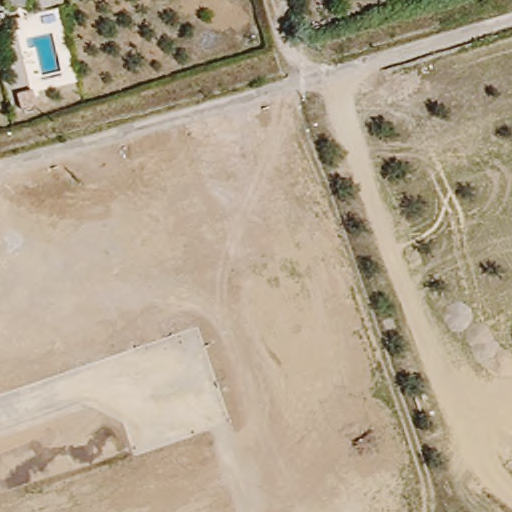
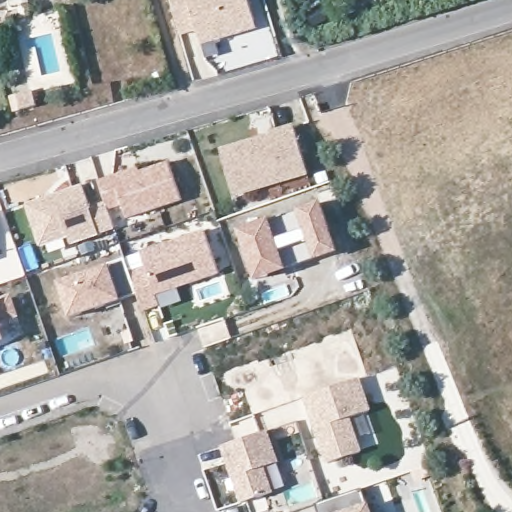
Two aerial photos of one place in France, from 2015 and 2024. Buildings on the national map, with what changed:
new [(241,33),(201,45),(196,30),(181,35),(171,0),(249,0),(255,20),(258,28),(241,33)]
unchanged [(271,135),(270,132),(293,125),(307,172),(233,194),(220,150),(271,135)]
new [(139,164),(141,169),(169,159),(182,196),(128,215),(123,201),(109,206),(106,200),(99,178),(114,173),(139,164)]
new [(39,235),(28,203),(83,184),(91,205),(106,200),(109,206),(115,225),(71,240),(69,233),(42,242),(39,235)]
new [(319,201),(328,227),(292,240),(297,254),(262,266),(248,226),(319,201)]
new [(248,226),(262,266),(297,254),(292,240),(328,227),(336,250),(255,278),(239,230),(248,226)]
new [(155,287),(160,304),(144,310),(138,293),(131,271),(146,265),(141,251),(206,230),(218,266),(188,276),(178,280),(155,287)]
new [(108,307),(107,303),(71,315),(60,280),(109,265),(108,262),(126,256),(131,271),(138,293),(121,298),(122,303),(108,307)]
new [(17,315),(0,321),(0,300),(10,296),(17,315)]
new [(0,340),(0,330),(3,338),(0,340)]
new [(370,411),(349,418),(361,452),(328,463),(315,426),(311,413),(305,396),(359,378),(370,411)]
new [(267,432),(278,463),(263,468),(272,493),(241,503),(222,447),(267,432)]
new [(376,503),(379,512),(318,512),(316,505),(363,488),(369,506),(376,503)]

